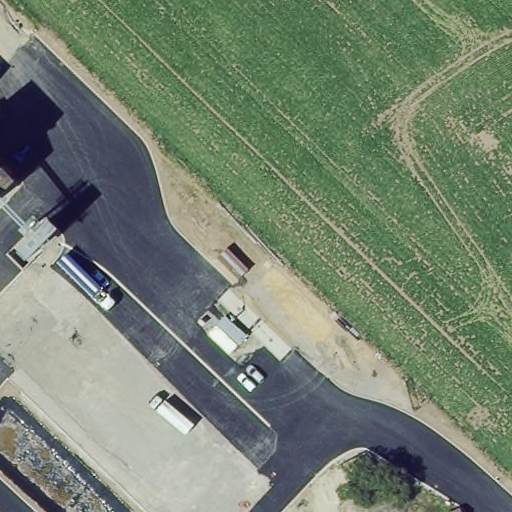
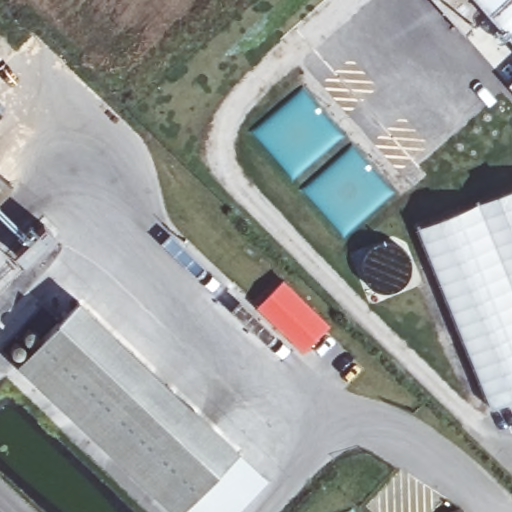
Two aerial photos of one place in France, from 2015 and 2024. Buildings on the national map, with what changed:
new [(466,36),(433,0),(475,0),(489,16),(466,36)]
new [(475,0),(512,0),(512,42),(489,16),(475,0)]
new [(512,83),(512,89),(509,86),(512,83)]
new [(420,235),(512,197),(512,408),(494,416),(420,235)]
new [(55,230),(64,239),(36,266),(27,257),(55,230)]
new [(281,286),(327,331),(301,357),(255,312),(281,286)]
new [(265,478),(232,512),(172,512),(17,364),(78,299),(265,478)]
unchanged [(456,512),(462,510),(463,512),(456,512)]

